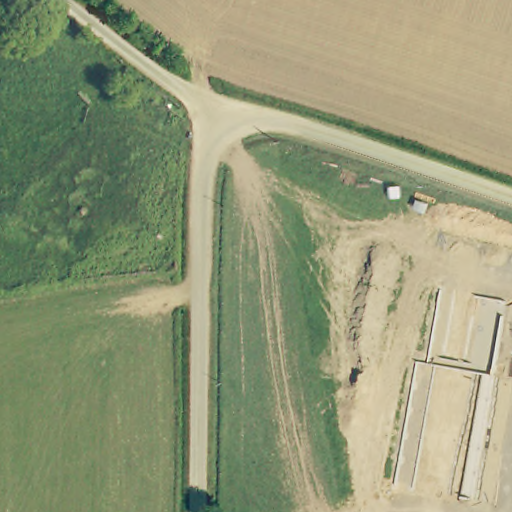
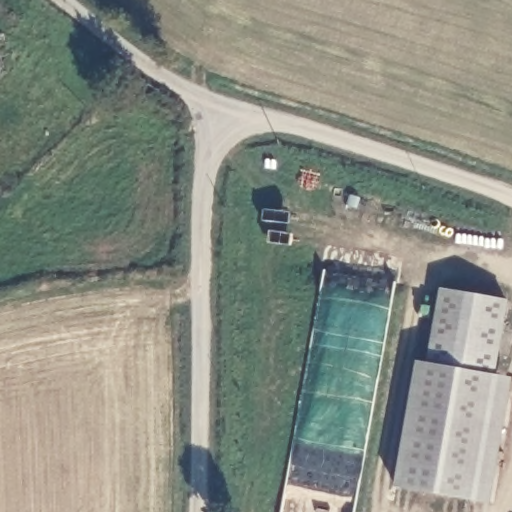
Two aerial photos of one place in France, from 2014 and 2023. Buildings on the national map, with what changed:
new [(414,361),(427,363),(439,288),(508,300),(496,375),(511,377),(490,503),(394,487),(414,361)]

